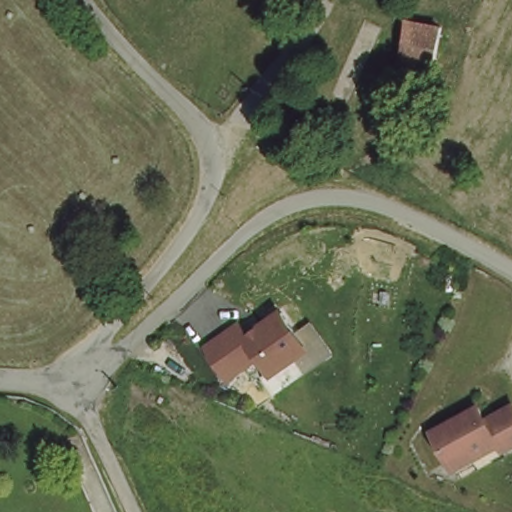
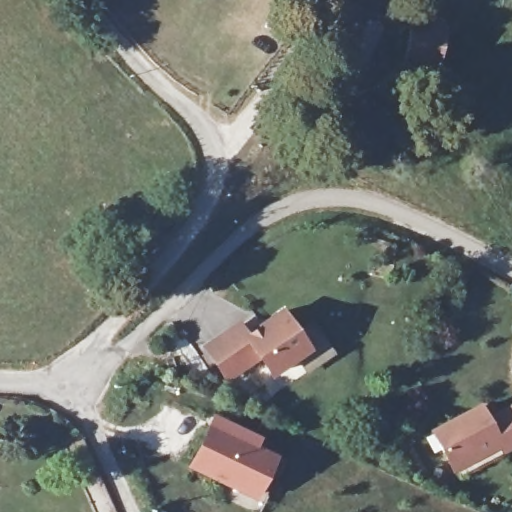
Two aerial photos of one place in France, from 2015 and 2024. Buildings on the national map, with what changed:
unchanged [(446,23),(438,67),(404,61),(411,17),(446,23)]
unchanged [(296,327),(310,316),(333,347),(303,369),(295,356),(268,375),(257,357),(225,378),(200,342),(236,317),(245,328),(282,306),(296,327)]
unchanged [(487,413),(512,400),(512,438),(500,446),(495,434),(450,458),(431,425),(478,401),(487,413)]
new [(211,415),(262,436),(257,448),(278,456),(256,502),(186,469),(211,415)]

